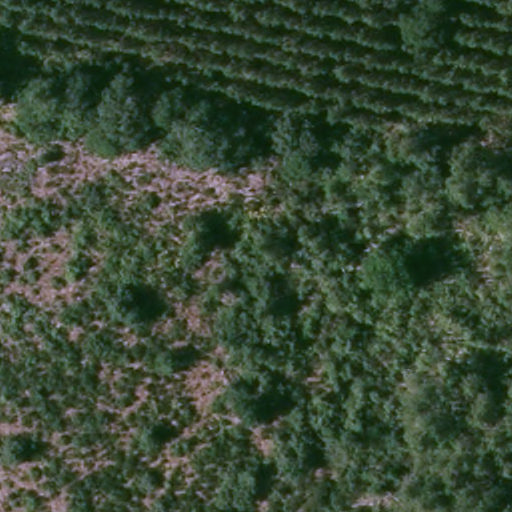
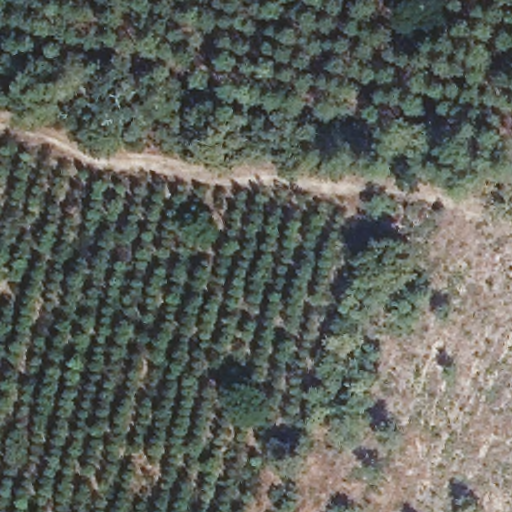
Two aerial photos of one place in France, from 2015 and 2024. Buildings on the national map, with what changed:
unchanged [(330,146),(359,105),(376,121),(356,151),(330,146)]

